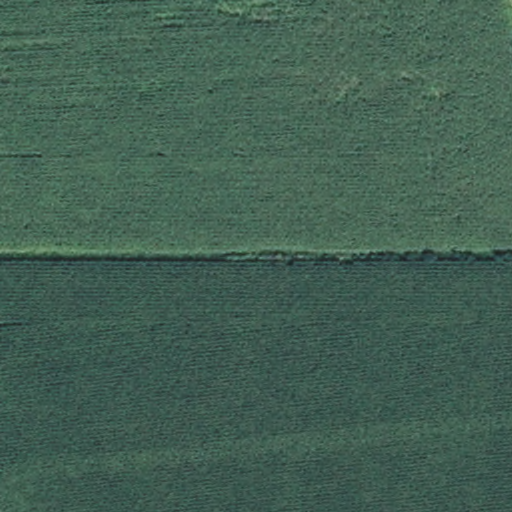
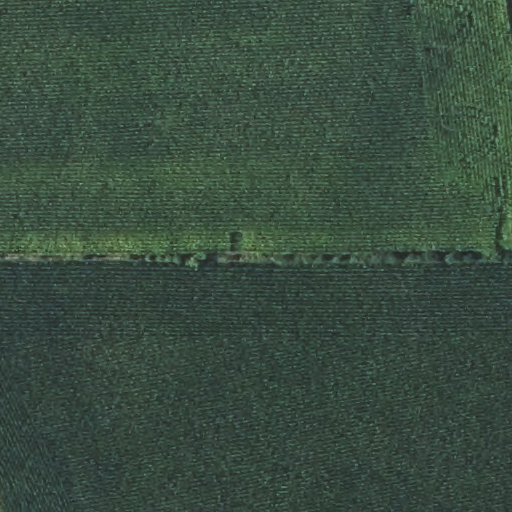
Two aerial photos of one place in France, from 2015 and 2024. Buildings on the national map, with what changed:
[]

